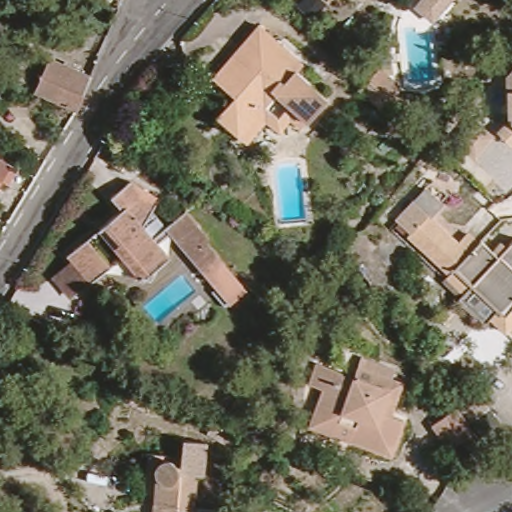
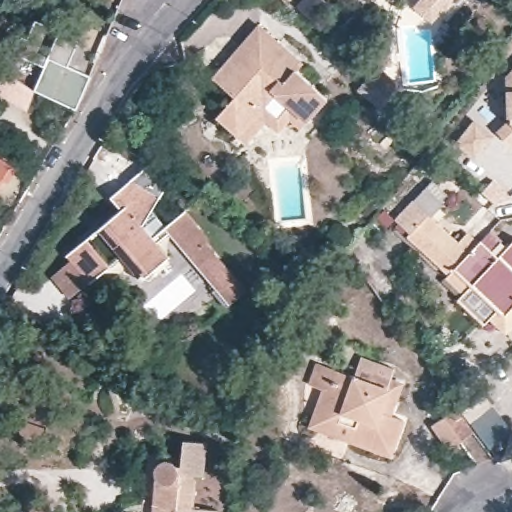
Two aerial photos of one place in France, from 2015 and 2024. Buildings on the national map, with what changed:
unchanged [(268,110),(248,133),(224,113),(241,92),(229,80),(222,74),(247,45),(267,21),(292,44),(311,60),(304,67),(335,95),(315,117),(309,125),(297,116),(288,126),(284,124),(275,116),(268,110)]
unchanged [(50,56),(91,75),(78,109),(36,89),(50,56)]
unchanged [(381,110),(359,90),(367,81),(378,70),(400,89),(390,100),(381,110)]
unchanged [(498,127),(480,150),(462,135),(479,112),(498,127)]
unchanged [(512,120),(512,141),(501,131),(512,120)]
unchanged [(16,166),(7,182),(1,179),(0,180),(0,157),(16,166)]
unchanged [(58,259),(78,242),(73,237),(91,220),(94,220),(98,219),(102,216),(104,215),(102,210),(124,192),(115,181),(133,165),(163,185),(155,197),(167,212),(172,217),(160,228),(170,240),(151,253),(151,257),(145,263),(126,240),(97,265),(77,281),(58,259)]
unchanged [(454,263),(429,238),(404,262),(381,240),(398,223),(394,219),(415,197),(416,198),(427,186),(445,200),(439,207),(464,232),(473,224),(482,233),(486,231),(505,248),(512,240),(512,310),(460,257),(454,263)]
unchanged [(248,272),(229,290),(216,275),(220,271),(172,217),(167,212),(185,195),(210,224),(207,226),(248,272)]
unchanged [(363,231),(382,246),(367,263),(350,247),(363,231)]
unchanged [(451,266),(454,263),(460,257),(512,310),(512,320),(509,323),(504,319),(495,310),(489,315),(464,288),(467,283),(451,266)]
unchanged [(312,400),(298,393),(305,372),(331,382),(344,386),(348,377),(391,393),(385,412),(381,425),(392,430),(381,465),(342,450),(301,435),(308,412),(312,400)]
unchanged [(461,413),(479,438),(456,454),(438,430),(461,413)]
unchanged [(157,470),(155,468),(155,463),(156,458),(159,454),(165,452),(172,454),(175,458),(180,458),(180,466),(198,468),(196,501),(199,502),(198,512),(155,512),(155,502),(156,494),(157,470)]

